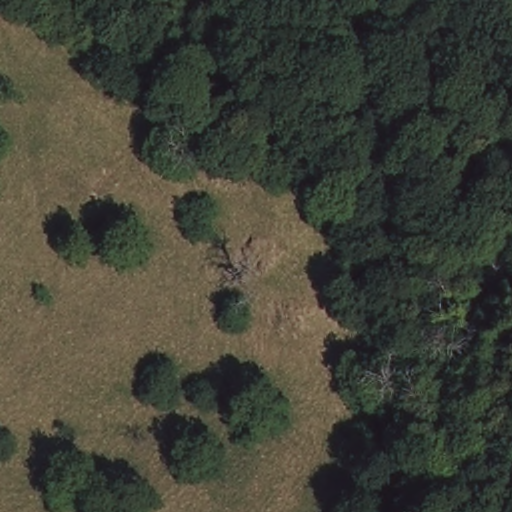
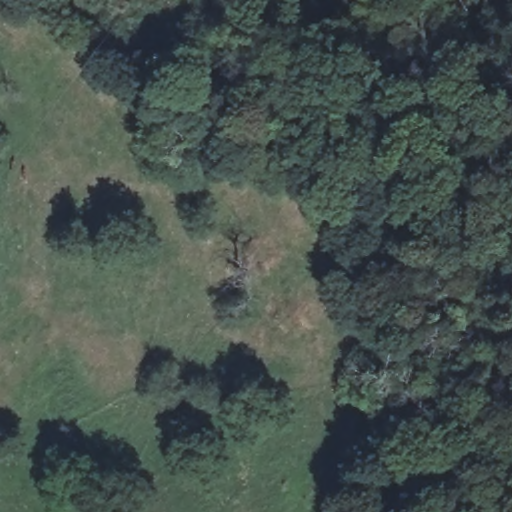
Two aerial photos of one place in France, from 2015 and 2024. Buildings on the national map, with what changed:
[]

